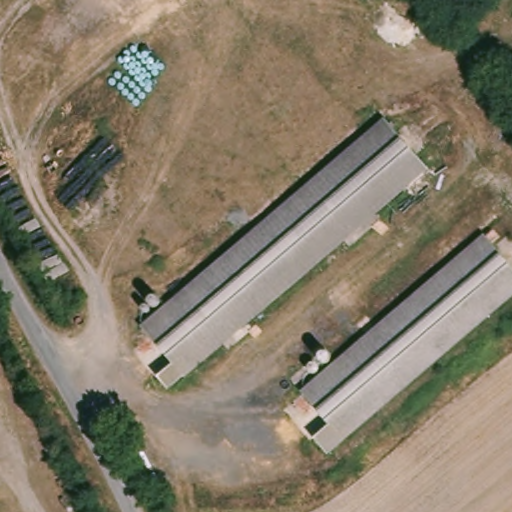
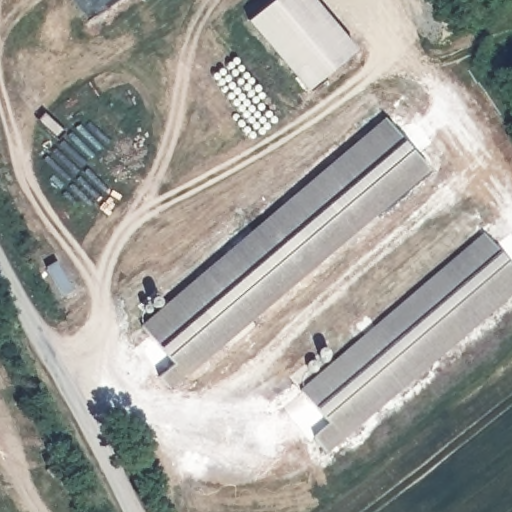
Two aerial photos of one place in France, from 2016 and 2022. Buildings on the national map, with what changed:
new [(303,87),(247,20),(271,0),(314,0),(354,46),(303,87)]
unchanged [(430,168),(171,390),(160,375),(175,363),(143,325),(386,119),(430,168)]
unchanged [(480,235),(512,274),(512,292),(322,455),(309,440),(324,426),(296,393),(480,235)]

